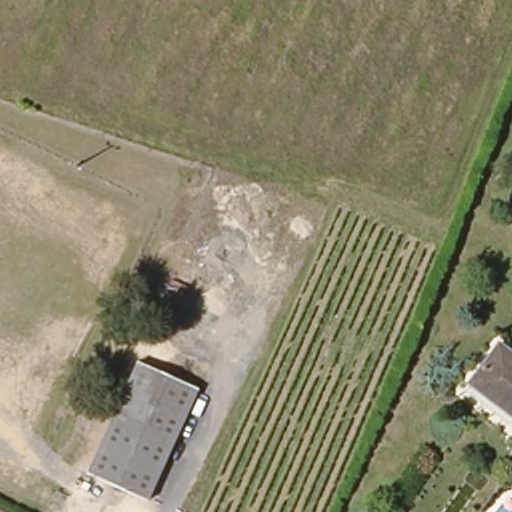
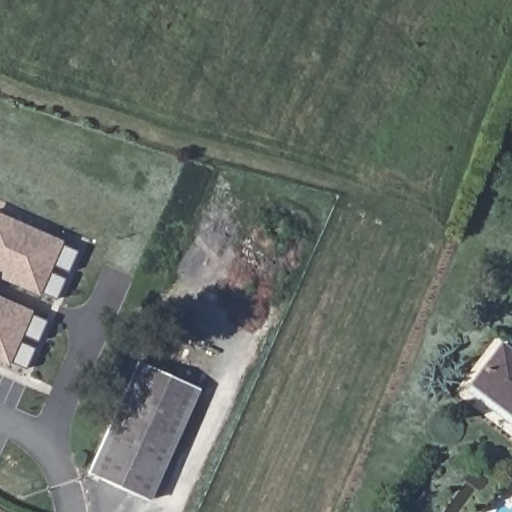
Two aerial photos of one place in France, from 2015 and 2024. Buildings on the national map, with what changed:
new [(55,262),(52,268),(71,276),(62,298),(3,272),(0,279),(0,213),(84,249),(75,270),(55,262)]
new [(44,340),(25,332),(22,337),(41,346),(32,367),(0,354),(0,295),(54,318),(44,340)]
unchanged [(468,377),(497,342),(512,355),(512,413),(468,377)]
unchanged [(145,364),(201,390),(149,501),(92,475),(145,364)]

